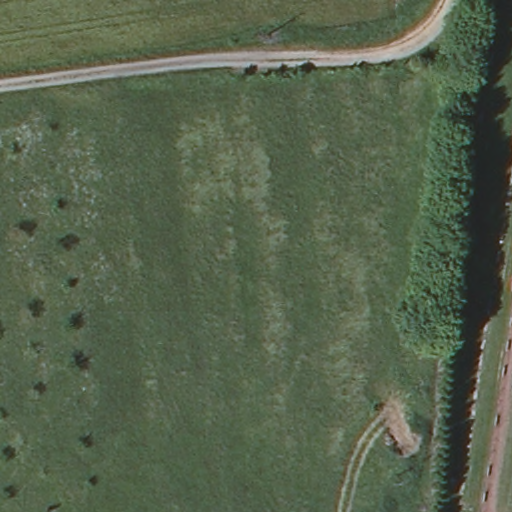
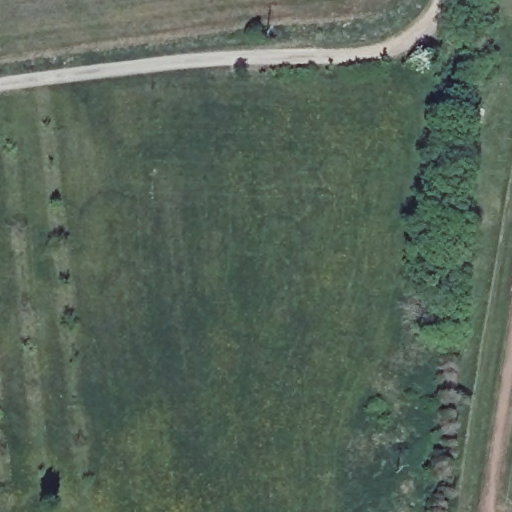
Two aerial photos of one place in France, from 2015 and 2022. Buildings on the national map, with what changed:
[]

